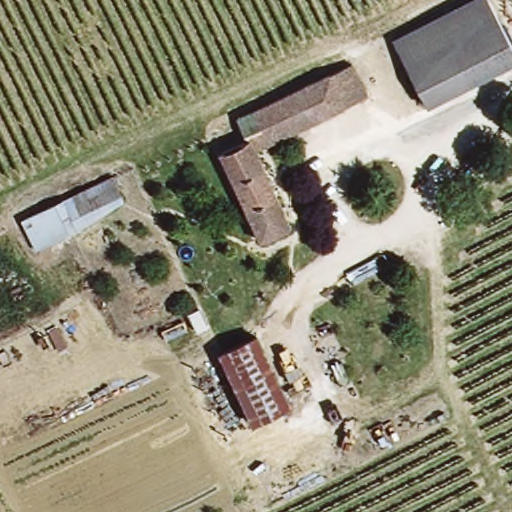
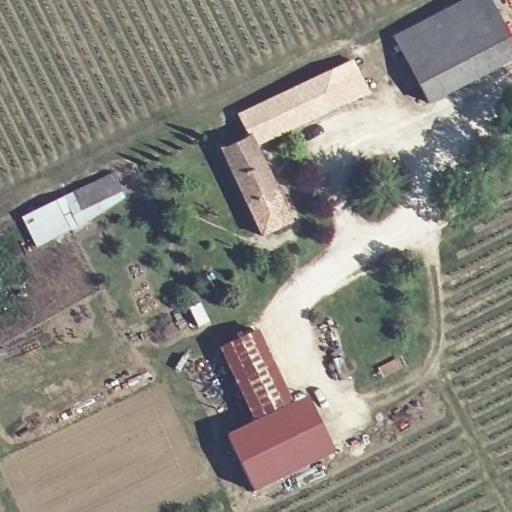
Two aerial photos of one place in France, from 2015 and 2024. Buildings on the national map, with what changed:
unchanged [(460,0),(483,0),(512,58),(512,62),(427,103),(392,33),(460,0)]
unchanged [(261,236),(216,150),(243,137),(232,116),(346,61),(362,93),(253,147),(290,221),(261,236)]
unchanged [(53,198),(111,172),(121,196),(67,232),(35,245),(20,216),(53,198)]
unchanged [(219,346),(254,330),(287,402),(252,418),(219,346)]
new [(335,454),(254,493),(225,436),(307,395),(335,454)]

